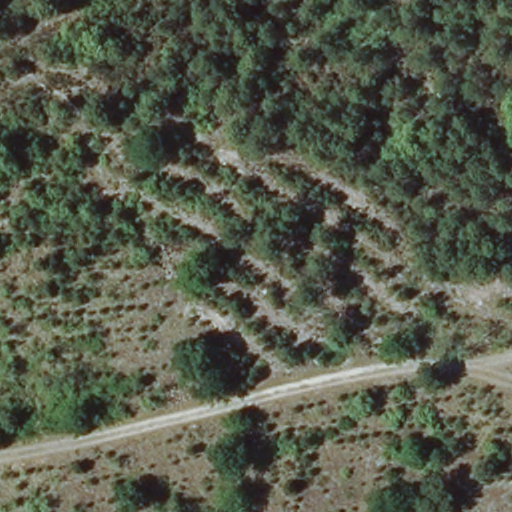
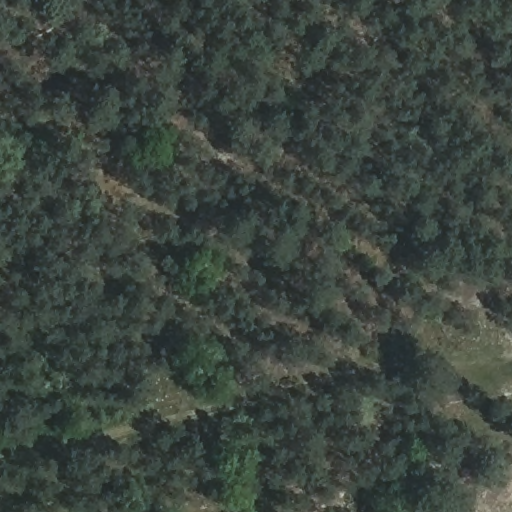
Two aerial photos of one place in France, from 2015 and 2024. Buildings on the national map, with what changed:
[]

